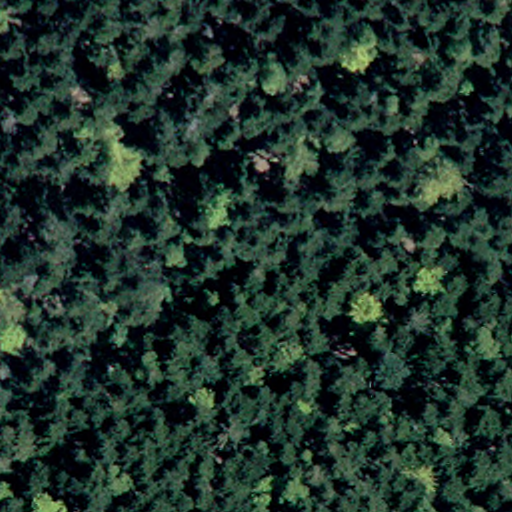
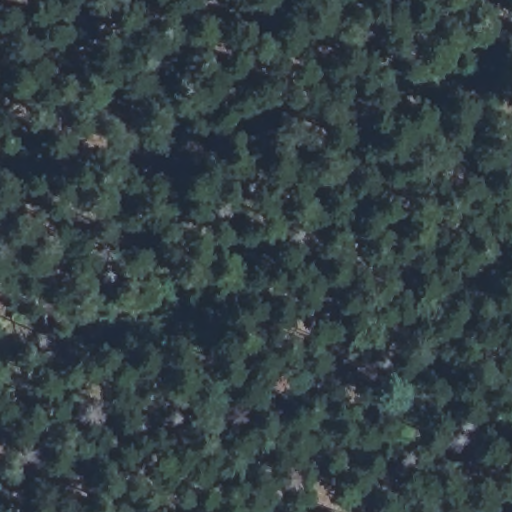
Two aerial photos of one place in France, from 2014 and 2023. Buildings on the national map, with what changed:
unchanged [(19,325),(23,324),(22,315),(23,310),(28,308),(38,317),(40,320),(36,327),(29,325),(24,329),(39,349),(26,357),(11,341),(8,344),(5,344),(2,341),(1,338),(6,332),(0,322),(0,301),(4,302),(16,318),(19,325)]

